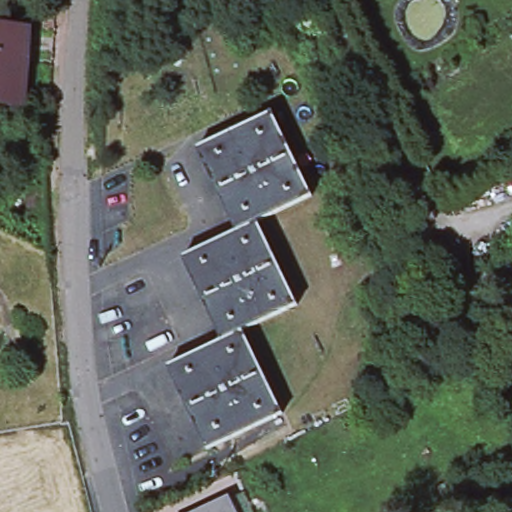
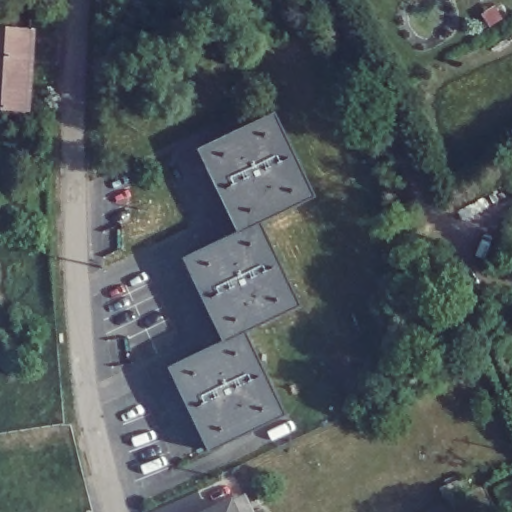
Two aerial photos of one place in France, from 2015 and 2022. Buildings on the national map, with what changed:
unchanged [(0,24),(3,24),(29,26),(27,55),(25,104),(0,103),(0,24)]
unchanged [(220,340),(189,274),(180,257),(235,231),(195,148),(270,112),(309,194),(253,221),(261,236),(293,304),(238,330),(278,412),(204,448),(165,366),(220,340)]
unchanged [(222,504),(226,512),(205,512),(222,504)]

